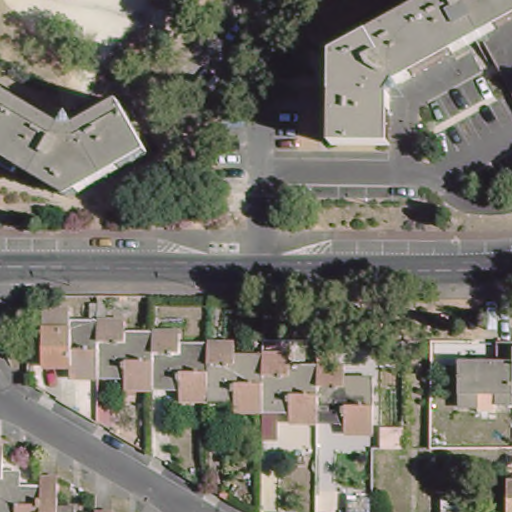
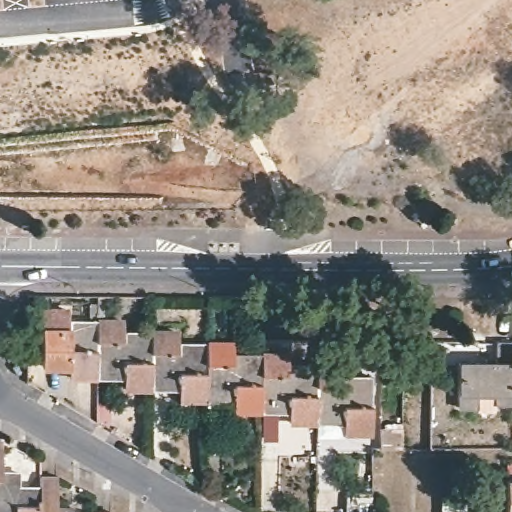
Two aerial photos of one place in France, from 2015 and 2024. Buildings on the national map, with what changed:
demolished [(331,53),(423,0),(512,0),(512,15),(397,83),(389,95),(388,142),(331,140),(331,53)]
demolished [(75,126),(118,102),(145,152),(68,196),(0,157),(0,90),(60,126),(75,126)]
unchanged [(73,369),(40,368),(40,312),(67,314),(67,324),(94,324),(93,381),(73,381),(73,369)]
unchanged [(94,324),(122,325),(122,334),(148,335),(148,391),(128,390),(128,381),(93,381),(94,324)]
unchanged [(175,346),(203,347),(203,404),(181,403),(181,392),(148,391),(148,335),(176,336),(175,346)]
unchanged [(495,388),(482,388),(481,404),(464,403),(465,357),(496,357),(497,339),(512,339),(512,398),(495,398),(495,388)]
unchanged [(258,414),(236,414),(236,405),(203,404),(203,347),(231,347),(231,358),(258,358),(258,414)]
unchanged [(286,368),(313,370),(312,425),(291,424),(291,414),(258,414),(258,358),(286,359),(286,368)]
unchanged [(313,370),(340,371),(340,379),(368,381),(367,438),(346,437),(346,425),(312,425),(313,370)]
unchanged [(18,491),(40,491),(40,512),(0,512),(0,446),(4,446),(3,477),(17,477),(18,491)]
unchanged [(60,478),(58,512),(59,512),(40,512),(40,491),(40,478),(60,478)]
unchanged [(510,484),(512,484),(512,512),(509,512),(510,484)]
unchanged [(464,512),(443,512),(443,504),(465,504),(464,512)]

